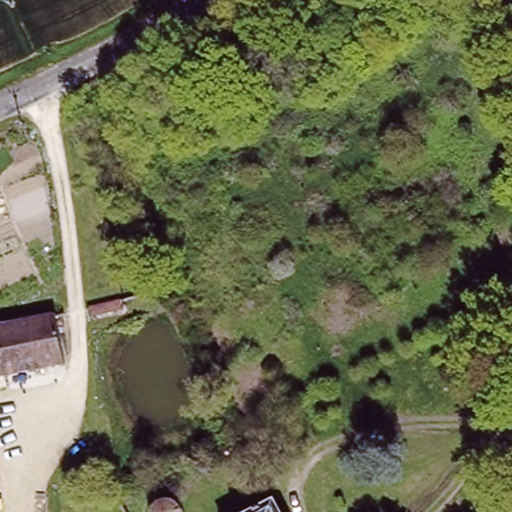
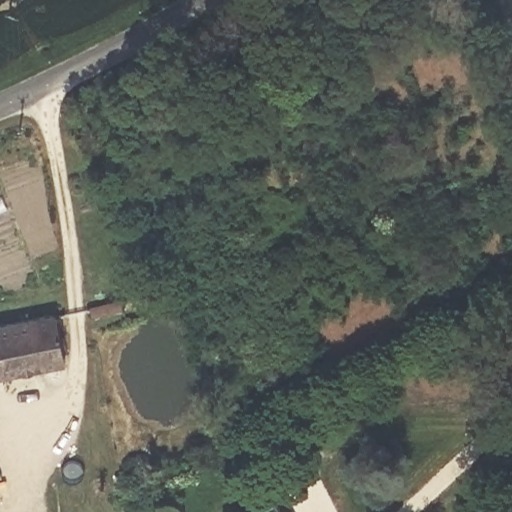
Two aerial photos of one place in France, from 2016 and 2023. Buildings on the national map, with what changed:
unchanged [(122,304),(124,314),(91,321),(89,310),(122,304)]
unchanged [(55,323),(66,371),(0,384),(0,335),(20,331),(55,323)]
unchanged [(172,504),(176,506),(180,510),(182,512),(151,512),(151,510),(155,507),(159,504),(163,503),(168,503),(172,504)]
unchanged [(278,512),(259,512),(274,504),(278,512)]

